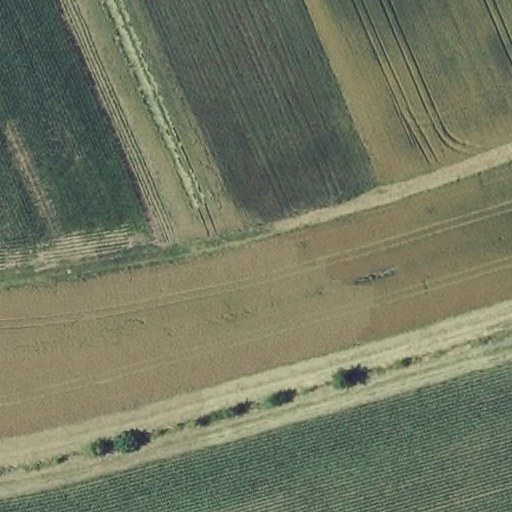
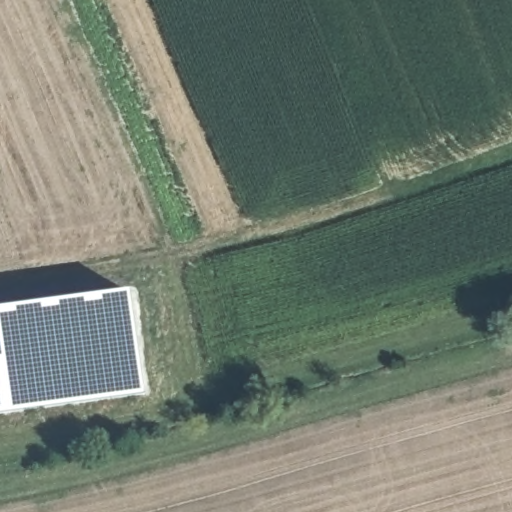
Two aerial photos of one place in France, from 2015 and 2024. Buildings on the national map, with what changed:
new [(147,391),(0,414),(0,313),(127,295),(147,391)]

